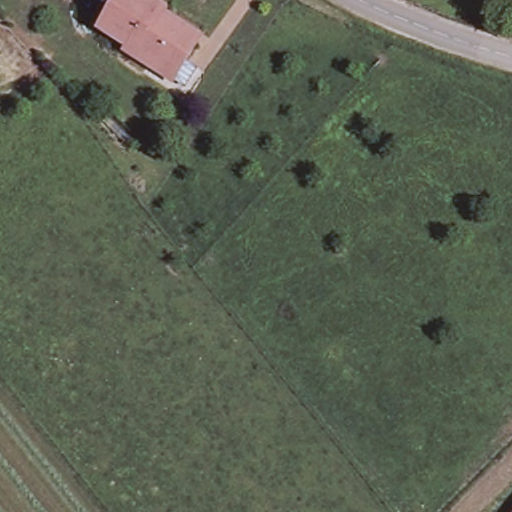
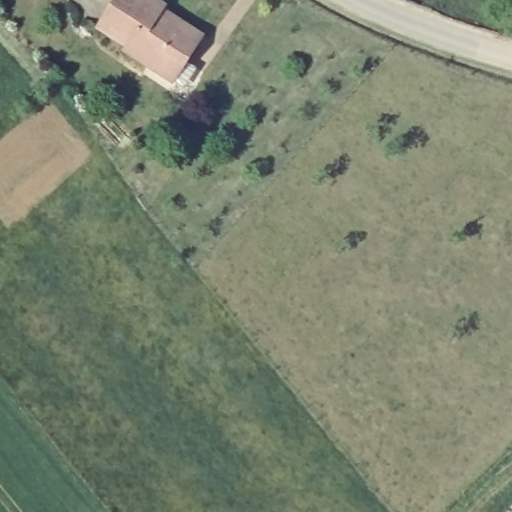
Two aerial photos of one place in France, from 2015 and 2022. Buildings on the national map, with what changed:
unchanged [(163,71),(122,48),(126,40),(97,24),(111,0),(158,0),(159,1),(156,5),(199,28),(194,36),(183,54),(183,56),(195,62),(182,83),(171,76),(163,71)]

